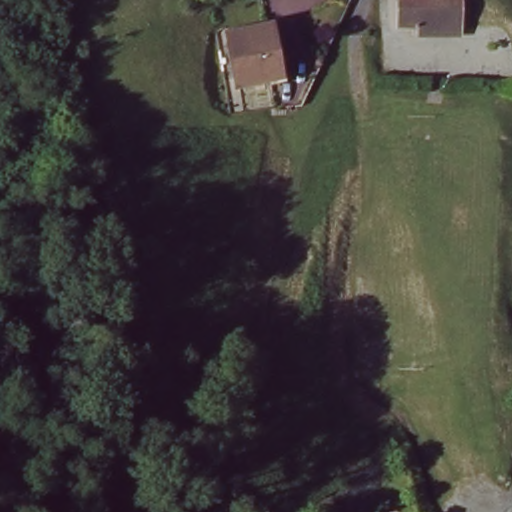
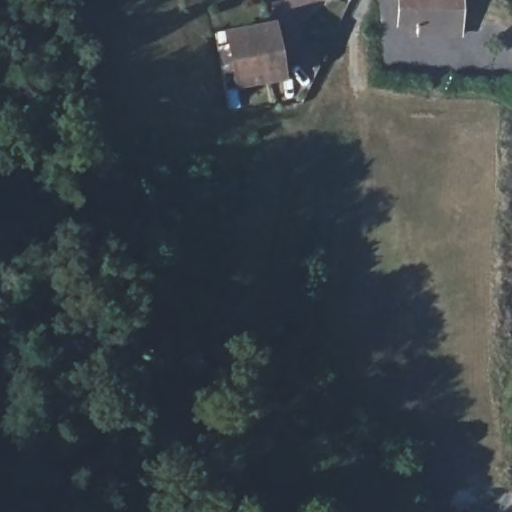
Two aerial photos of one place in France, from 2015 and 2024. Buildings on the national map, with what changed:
unchanged [(459,33),(411,34),(411,25),(398,25),(398,0),(459,0),(459,33)]
unchanged [(230,33),(268,25),(279,77),(240,85),(230,33)]

